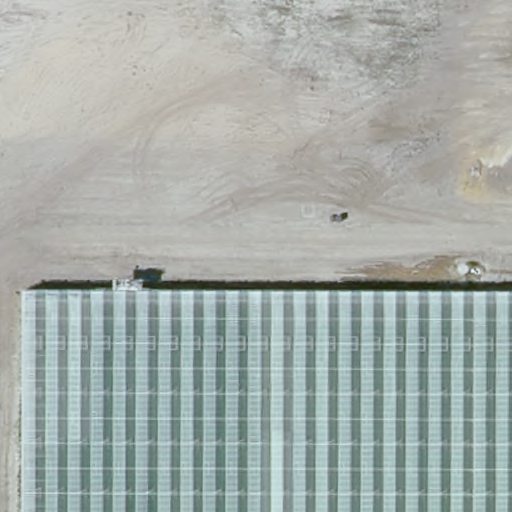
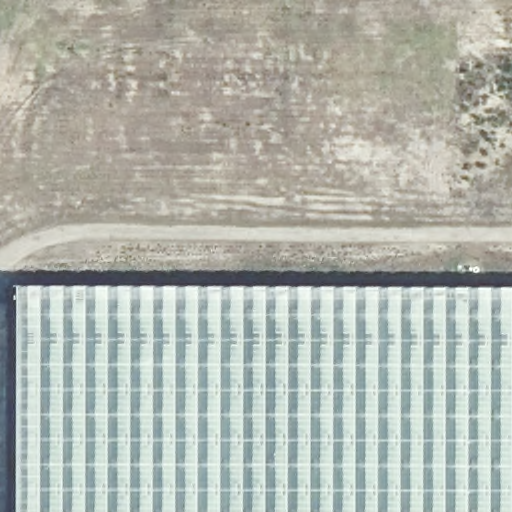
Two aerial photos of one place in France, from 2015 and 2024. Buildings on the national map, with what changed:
unchanged [(23,285),(512,291),(512,512),(22,512),(23,285)]

